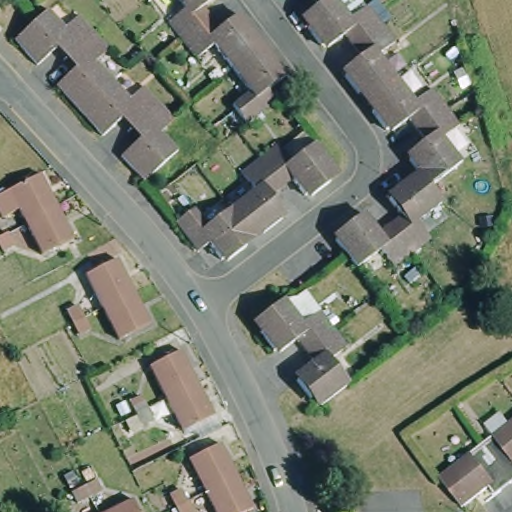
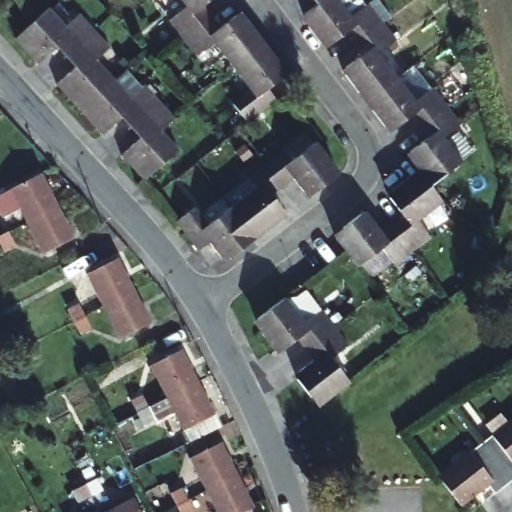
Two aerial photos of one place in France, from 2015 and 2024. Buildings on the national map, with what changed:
unchanged [(218,11),(189,34),(176,17),(193,3),(191,0),(210,0),(209,0),(218,11)]
unchanged [(369,4),(383,21),(353,45),(344,35),(329,46),(326,43),(326,42),(321,46),(308,29),(313,25),(305,15),(323,1),(324,0),(339,0),(352,16),(369,4)]
unchanged [(324,0),(323,1),(322,0),(324,0)]
unchanged [(57,49),(38,67),(16,43),(49,11),(63,26),(79,13),(94,30),(64,56),(57,49)]
unchanged [(221,39),(203,52),(189,34),(218,11),(227,22),(241,11),(244,15),(249,12),(260,26),(263,30),(259,32),(264,40),(237,61),(221,39)]
unchanged [(397,39),(379,53),(399,77),(371,100),(363,91),(359,95),(358,94),(344,75),(348,72),(347,70),(346,69),(361,55),(353,45),(383,21),(397,39)]
unchanged [(56,88),(76,69),(64,56),(94,30),(110,47),(95,62),(114,83),(79,112),(56,88)]
unchanged [(271,50),(276,47),(290,65),(286,69),(289,72),(274,83),(283,94),(253,117),(240,101),(257,87),(237,61),(264,40),(271,50)]
unchanged [(416,100),(434,87),(447,105),(417,128),(409,117),(393,130),(390,127),(387,130),(375,115),(379,112),(371,100),(399,77),(416,100)]
unchanged [(123,121),(103,139),(79,112),(114,83),(129,99),(144,85),(161,102),(130,129),(123,121)]
unchanged [(178,121),(162,135),(178,152),(143,183),(120,158),(141,140),(130,129),(161,102),(178,121)]
unchanged [(461,122),(444,136),(463,161),(431,186),(442,201),(418,220),(432,239),(414,254),(390,223),(401,215),(390,200),(394,196),(391,192),(409,178),(413,182),(422,175),(409,160),(413,156),(411,152),(426,140),(417,128),(447,105),(461,122)]
unchanged [(277,138),(293,156),(316,139),(337,165),(328,174),(331,177),(313,190),(311,187),(308,189),(306,190),(293,175),(284,182),(259,152),(277,138)]
unchanged [(271,191),(284,206),(281,210),(284,214),(267,227),(264,224),(254,231),(231,203),(255,184),(242,165),(259,152),(284,182),(271,191)]
unchanged [(47,171),(63,203),(31,219),(24,205),(7,215),(0,201),(0,195),(15,187),(47,171)]
unchanged [(63,203),(79,235),(48,251),(31,219),(63,203)]
unchanged [(243,240),(246,242),(231,255),(227,251),(221,256),(208,239),(199,247),(176,217),(193,204),(208,221),(231,203),(254,231),(243,240)]
unchanged [(414,254),(398,266),(383,249),(358,269),(346,253),(336,241),(346,233),(343,229),(361,215),(364,219),(368,216),(380,231),(390,223),(414,254)]
unchanged [(8,245),(3,234),(0,229),(0,221),(9,216),(15,228),(20,240),(8,245)]
unchanged [(103,308),(86,276),(118,260),(134,292),(103,308)]
unchanged [(120,341),(103,308),(134,292),(151,326),(120,341)]
unchanged [(298,341),(283,353),(279,350),(275,352),(261,335),(265,331),(258,321),(286,300),(305,325),(323,310),(336,327),(306,351),(298,341)]
unchanged [(74,323),(68,310),(78,305),(84,318),(90,328),(80,334),(74,323)]
unchanged [(351,346),(334,360),(353,384),(324,407),(316,398),(313,401),(298,383),(301,379),(298,375),(314,362),(306,351),(336,327),(351,346)]
unchanged [(168,397),(151,365),(181,348),(198,381),(168,397)]
unchanged [(183,428),(168,397),(198,381),(214,413),(183,428)]
unchanged [(138,417),(131,405),(142,400),(148,412),(154,422),(143,428),(138,417)]
unchanged [(512,420),(512,479),(484,442),(512,420)]
unchanged [(512,481),(498,492),(491,484),(464,505),(441,475),(484,442),(512,479),(512,481)]
unchanged [(207,493),(190,460),(221,445),(238,477),(207,493)]
unchanged [(256,510),(250,512),(217,512),(207,493),(238,477),(256,510)]
unchanged [(74,493),(85,488),(98,482),(103,493),(91,499),(80,505),(74,493)]
unchanged [(177,509),(171,497),(183,491),(188,503),(193,512),(179,512),(177,509)]
unchanged [(133,496),(142,512),(100,512),(133,496)]

